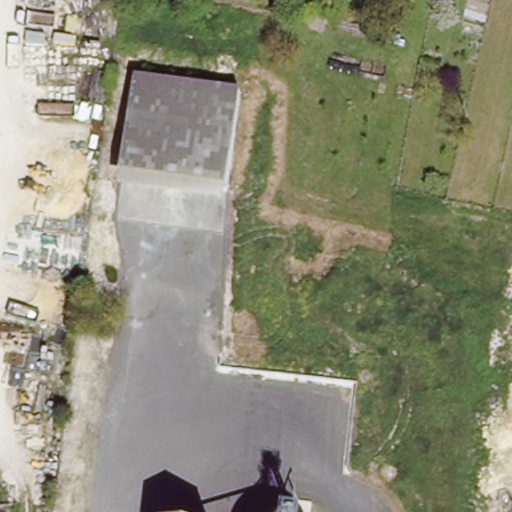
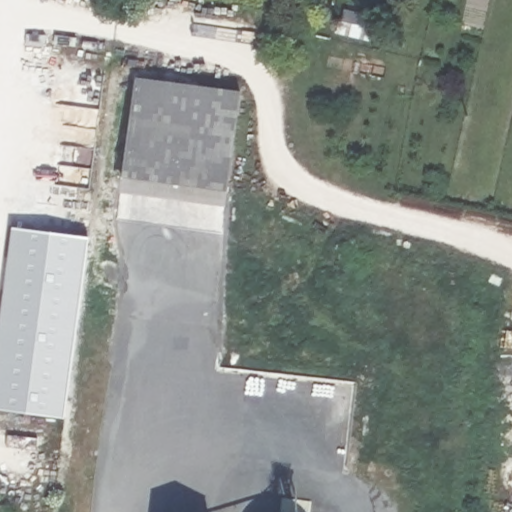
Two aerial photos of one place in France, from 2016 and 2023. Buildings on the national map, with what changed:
unchanged [(241,91),(226,195),(121,181),(136,76),(241,91)]
new [(89,236),(66,419),(0,411),(0,336),(14,226),(89,236)]
unchanged [(286,512),(286,509),(311,512),(286,512)]

